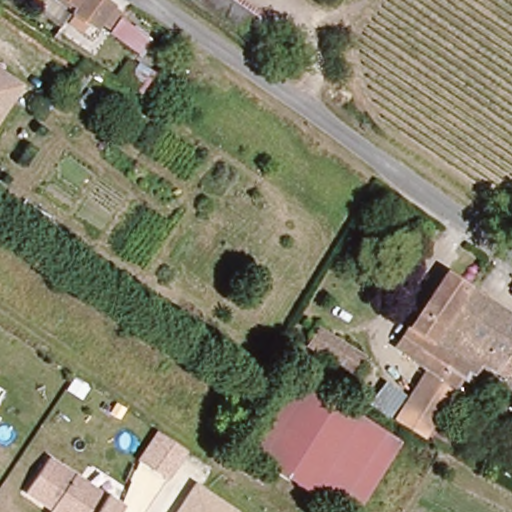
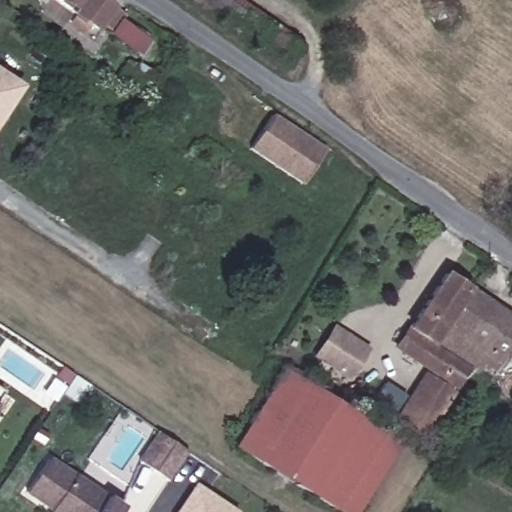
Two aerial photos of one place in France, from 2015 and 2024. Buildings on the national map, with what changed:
unchanged [(124,19),(157,42),(143,60),(53,0),(110,0),(128,12),(124,19)]
unchanged [(201,0),(241,0),(289,33),(271,52),(201,0)]
unchanged [(0,113),(0,75),(18,87),(0,113)]
new [(302,186),(249,150),(273,114),(327,149),(302,186)]
unchanged [(440,374),(400,348),(447,273),(469,288),(438,341),(462,358),(473,342),(494,356),(483,374),(473,368),(460,387),(440,374)]
unchanged [(512,316),(512,386),(507,392),(483,374),(494,356),(473,342),(462,358),(438,341),(469,288),(512,316)]
unchanged [(353,377),(303,347),(317,324),(366,354),(353,377)]
unchanged [(409,395),(426,371),(437,378),(440,374),(460,387),(441,420),(464,433),(452,452),(371,404),(384,381),(409,395)]
unchanged [(352,512),(341,512),(250,454),(296,382),(396,444),(352,512)]
unchanged [(0,390),(2,391),(0,394),(0,390)]
unchanged [(171,482),(136,460),(157,429),(190,451),(171,482)]
unchanged [(93,512),(49,512),(49,510),(25,494),(50,458),(106,493),(93,512)]
unchanged [(194,482),(234,509),(233,512),(174,512),(194,482)]

